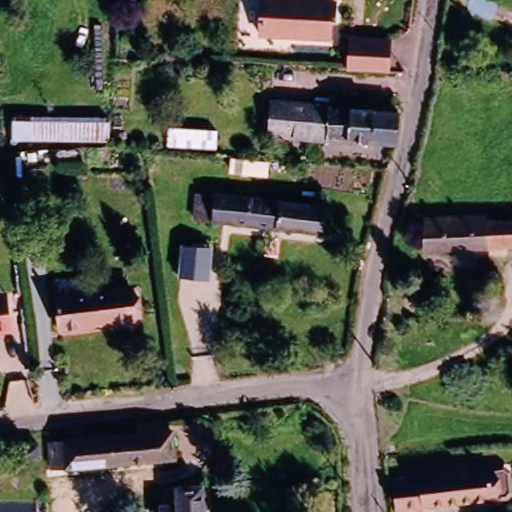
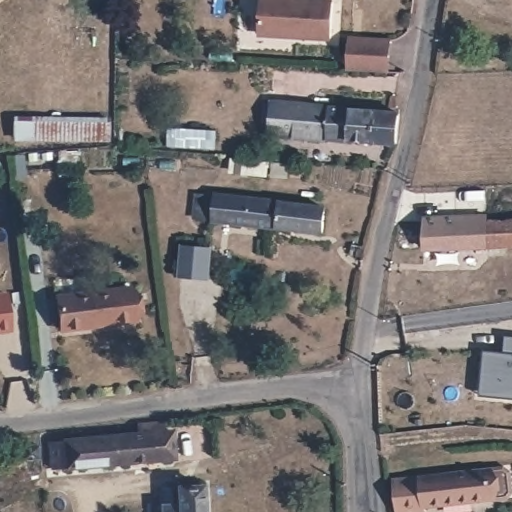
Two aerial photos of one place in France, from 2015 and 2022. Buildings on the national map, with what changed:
unchanged [(287,1),(335,2),(332,42),(262,38),(263,0),(286,0),(287,1)]
unchanged [(348,43),(386,45),(385,76),(347,75),(348,43)]
unchanged [(323,146),(252,143),(253,114),(323,116),(323,146)]
unchanged [(393,142),(392,148),(323,146),(323,116),(397,119),(393,142)]
unchanged [(110,118),(108,148),(11,146),(10,120),(110,118)]
unchanged [(215,129),(212,155),(167,152),(168,124),(215,129)]
unchanged [(320,212),(317,239),(200,225),(202,199),(320,212)]
unchanged [(512,249),(492,251),(490,220),(512,219),(512,249)]
unchanged [(425,254),(425,223),(490,220),(492,251),(425,254)]
unchanged [(127,288),(132,321),(64,331),(58,297),(127,288)]
unchanged [(2,336),(0,336),(0,314),(2,336)]
new [(485,350),(504,351),(505,336),(512,336),(512,397),(480,394),(485,350)]
unchanged [(127,438),(127,426),(152,425),(152,435),(163,434),(165,463),(48,473),(47,444),(127,438)]
unchanged [(42,445),(41,458),(18,458),(19,445),(42,445)]
unchanged [(506,498),(424,510),(424,512),(398,512),(394,483),(503,468),(506,498)]
unchanged [(185,497),(208,497),(209,512),(167,512),(185,511),(185,497)]

